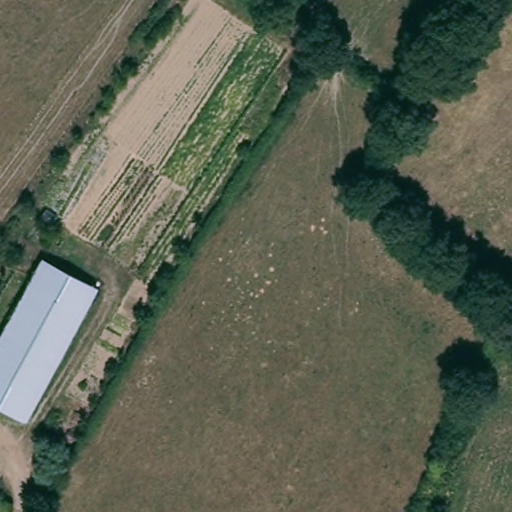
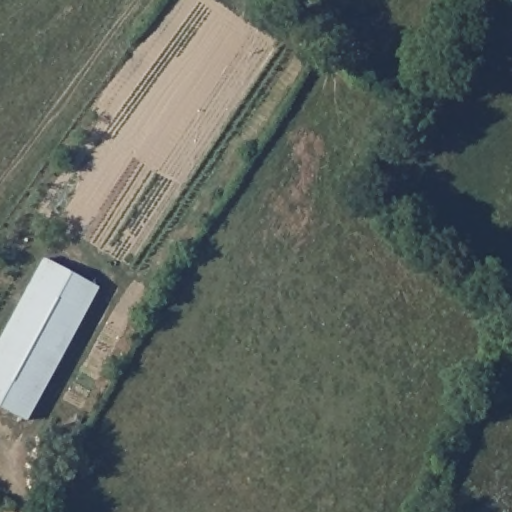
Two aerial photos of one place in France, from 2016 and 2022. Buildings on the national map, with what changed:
unchanged [(29,421),(0,406),(0,338),(15,308),(40,257),(96,285),(67,343),(29,421)]

